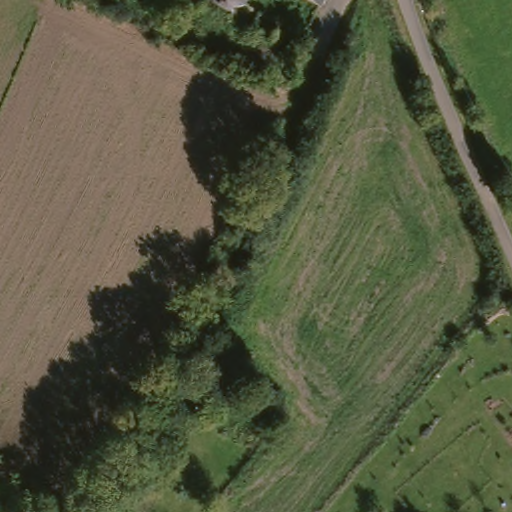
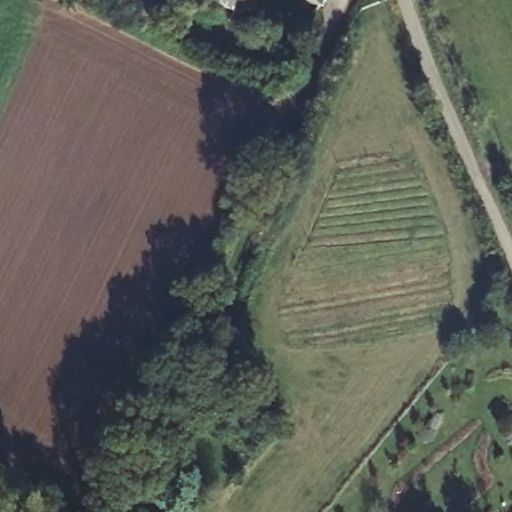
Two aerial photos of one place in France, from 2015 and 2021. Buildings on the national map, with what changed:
unchanged [(291,29),(287,44),(232,17),(237,10),(222,0),(249,0),(283,20),(282,25),(291,29)]
unchanged [(329,8),(315,0),(333,0),(329,8)]

